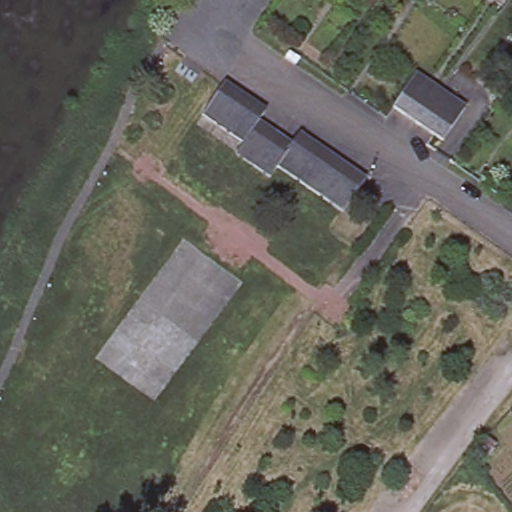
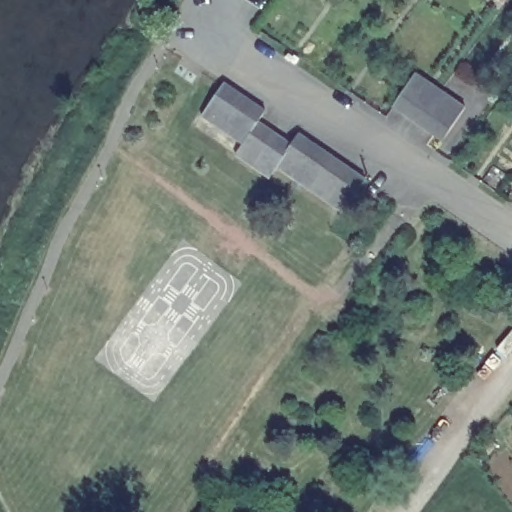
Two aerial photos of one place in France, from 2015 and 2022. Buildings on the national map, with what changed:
unchanged [(443,89),(470,109),(447,140),(420,121),(398,106),(422,74),(443,89)]
unchanged [(335,211),(328,206),(311,195),(294,183),(278,172),(272,181),(270,183),(253,172),(236,160),(238,157),(244,149),(223,135),(202,121),(225,87),(246,102),(266,116),(259,127),(276,138),(292,150),(300,139),(317,150),(333,161),(350,172),(367,184),(360,195),(345,217),(335,211)]

